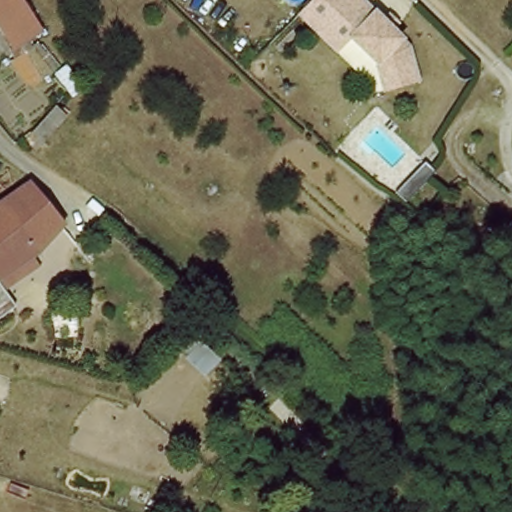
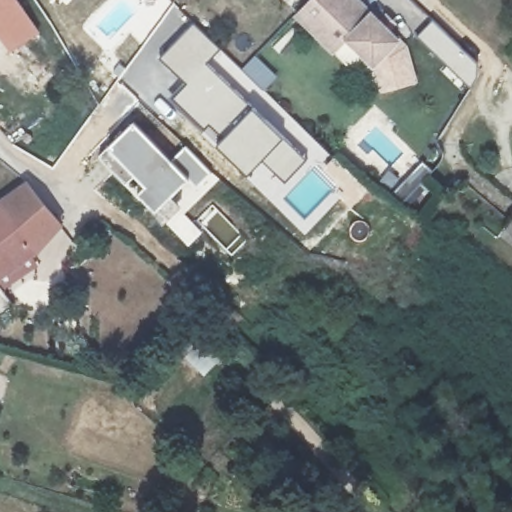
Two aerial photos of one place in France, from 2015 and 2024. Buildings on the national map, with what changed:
unchanged [(44,29),(30,40),(54,70),(41,80),(0,29),(0,0),(23,0),(25,3),(44,29)]
unchanged [(375,66),(348,41),(335,54),(296,16),(311,0),(355,0),(380,24),(385,17),(394,25),(388,32),(405,48),(415,82),(394,88),(382,91),(375,66)]
new [(193,23),(221,49),(207,62),(258,112),(284,133),(286,135),(261,164),(248,177),(216,145),(172,98),(186,83),(160,58),(193,23)]
new [(256,54),(278,76),(263,91),(286,114),(281,120),(287,129),(284,133),(258,112),(207,62),(221,49),(242,69),(256,54)]
new [(165,224),(96,156),(133,120),(171,159),(184,145),(213,173),(197,188),(189,180),(172,197),(182,208),(203,232),(188,247),(165,224)]
new [(286,135),(310,159),(284,184),(261,164),(286,135)]
unchanged [(38,258),(4,276),(46,321),(33,330),(9,300),(0,306),(0,203),(32,181),(71,229),(38,258)]

